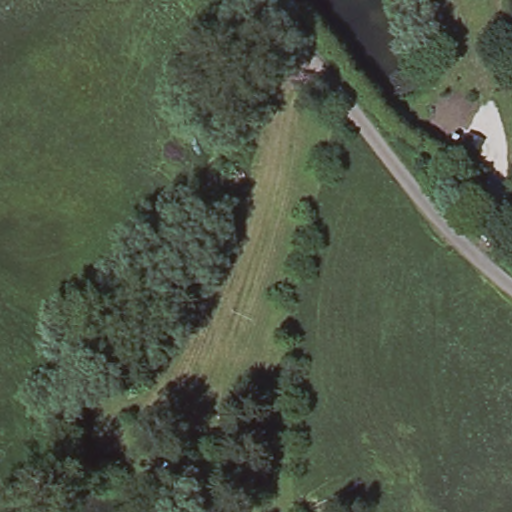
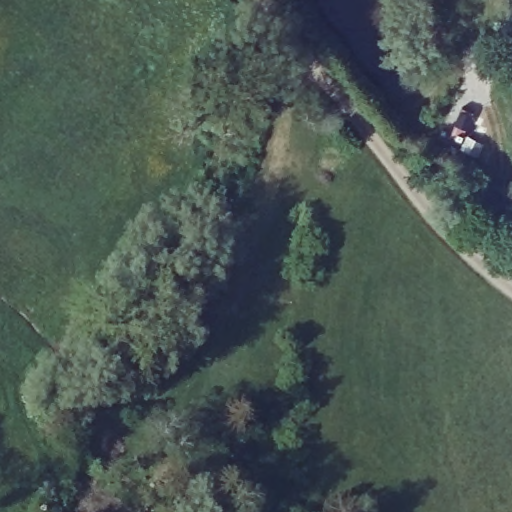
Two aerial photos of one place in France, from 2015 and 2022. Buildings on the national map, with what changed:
[]

